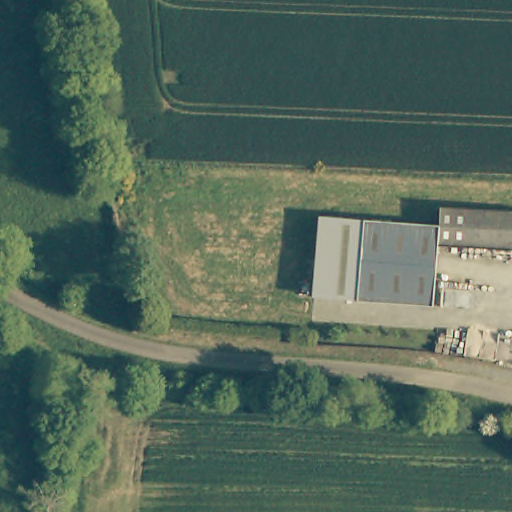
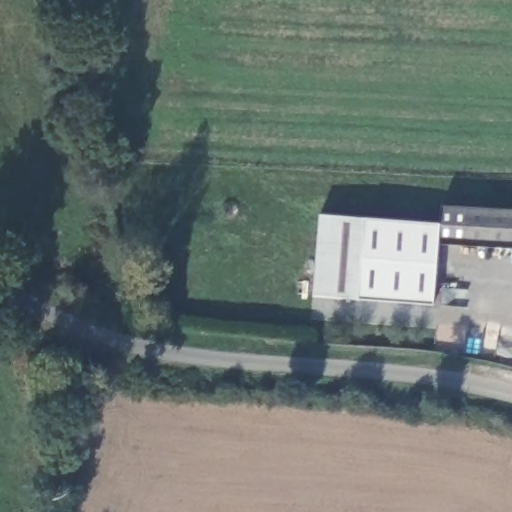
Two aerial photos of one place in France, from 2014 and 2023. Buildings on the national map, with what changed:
unchanged [(365,299),(370,219),(446,224),(447,207),(512,211),(512,247),(445,243),(441,304),(365,299)]
unchanged [(365,299),(310,296),(321,217),(370,219),(365,299)]

